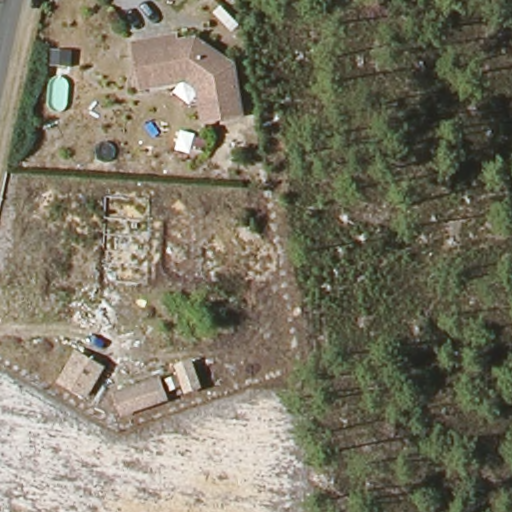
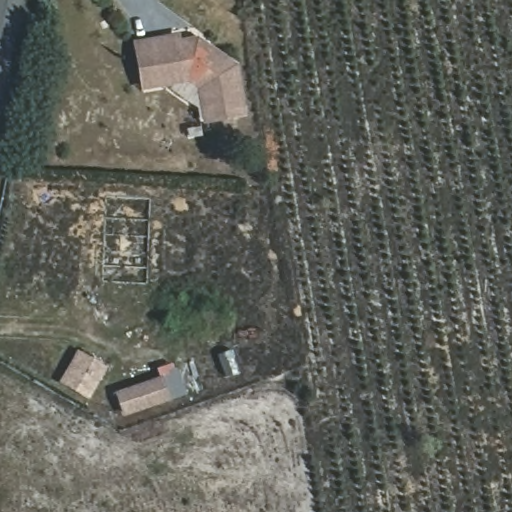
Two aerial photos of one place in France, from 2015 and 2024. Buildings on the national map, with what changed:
unchanged [(232,56),(239,105),(202,110),(197,77),(187,69),(140,76),(134,32),(176,26),(177,32),(195,29),(232,56)]
unchanged [(200,374),(186,379),(176,354),(190,348),(200,374)]
unchanged [(87,391),(62,380),(76,350),(100,361),(87,391)]
unchanged [(166,397),(124,414),(116,396),(158,379),(166,397)]

